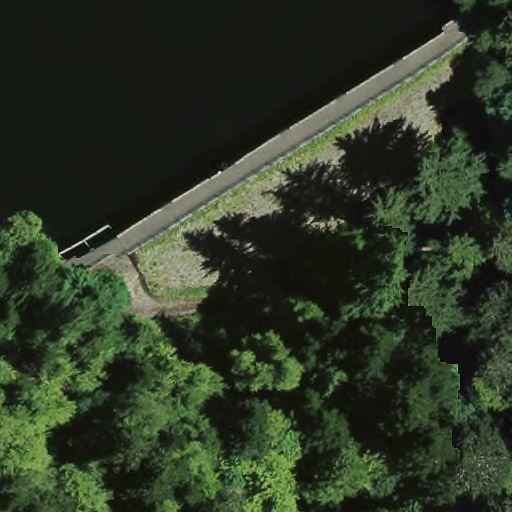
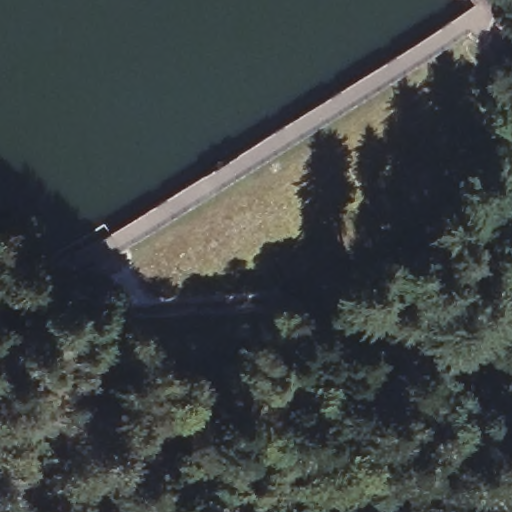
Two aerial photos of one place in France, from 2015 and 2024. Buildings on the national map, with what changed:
[]

